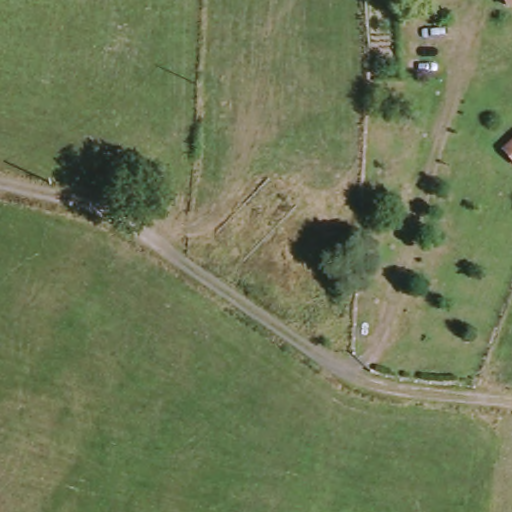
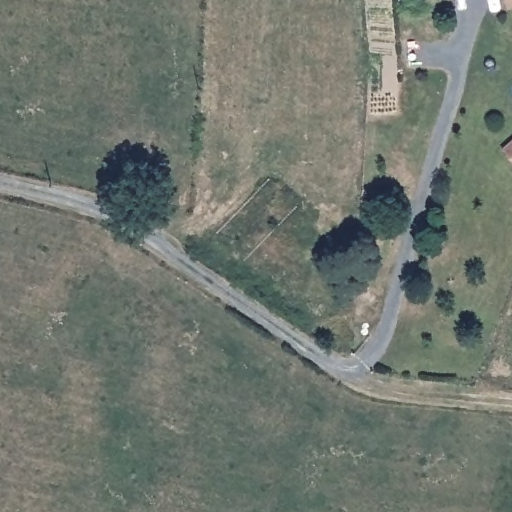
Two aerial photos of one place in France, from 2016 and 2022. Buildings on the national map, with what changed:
unchanged [(512,159),(502,149),(512,139),(512,159)]

